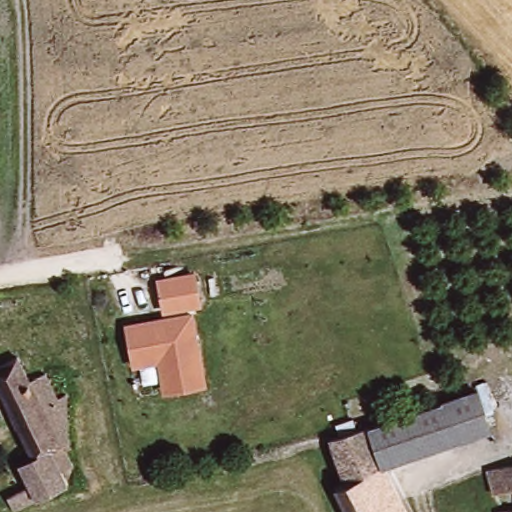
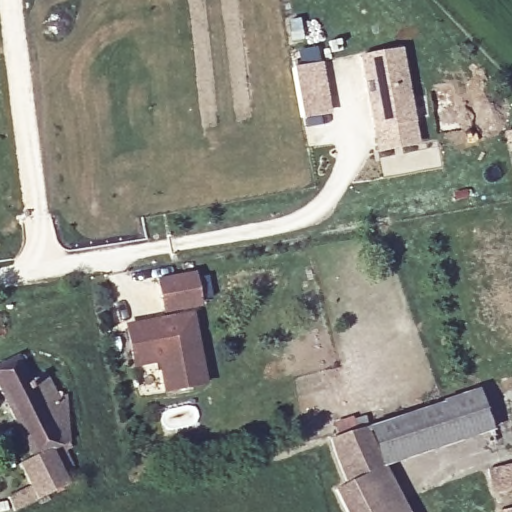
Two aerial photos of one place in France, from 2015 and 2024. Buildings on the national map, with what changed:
new [(360,57),(401,49),(418,146),(377,154),(360,57)]
new [(292,69),(321,64),(330,114),(301,119),(292,69)]
unchanged [(164,312),(159,282),(194,276),(200,307),(164,312)]
unchanged [(160,363),(135,367),(129,327),(192,318),(206,390),(166,395),(160,363)]
unchanged [(0,392),(0,366),(17,358),(41,407),(66,397),(69,407),(72,441),(64,443),(75,468),(62,475),(69,490),(20,512),(12,512),(7,501),(27,492),(16,466),(32,459),(0,392)]
unchanged [(477,390),(488,423),(457,436),(446,405),(445,397),(477,390)]
unchanged [(446,405),(457,436),(385,468),(370,433),(446,405)]
unchanged [(350,486),(335,447),(336,446),(370,433),(385,468),(385,470),(350,486)]
unchanged [(512,495),(492,498),(487,453),(512,451),(512,495)]
unchanged [(385,470),(404,512),(346,512),(337,492),(350,486),(385,470)]
unchanged [(512,511),(512,512),(504,512),(512,511)]

